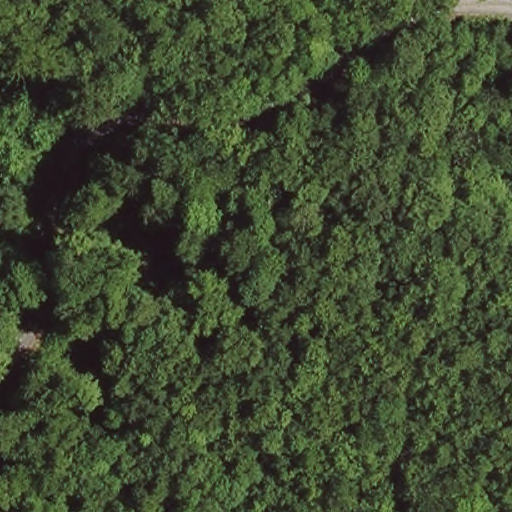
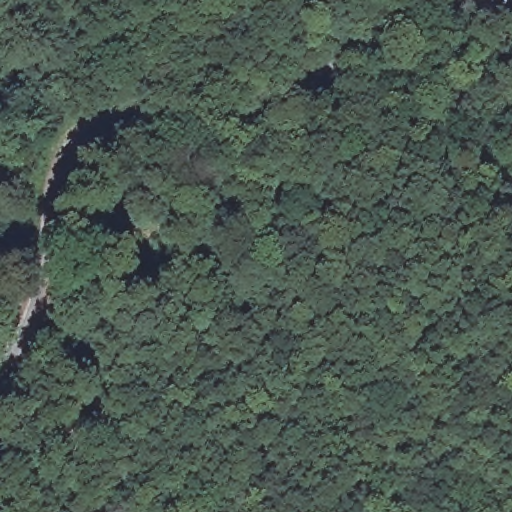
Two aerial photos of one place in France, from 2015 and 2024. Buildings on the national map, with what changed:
[]

